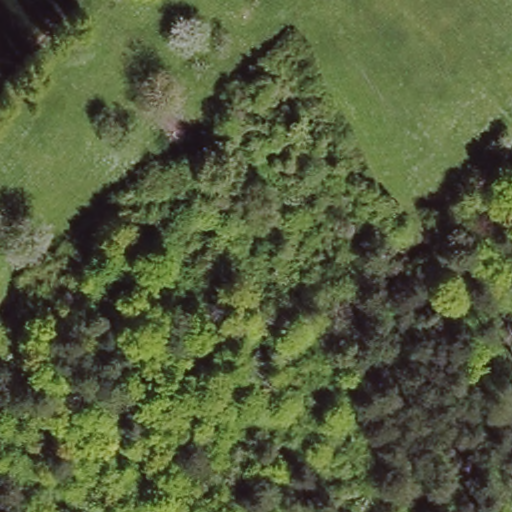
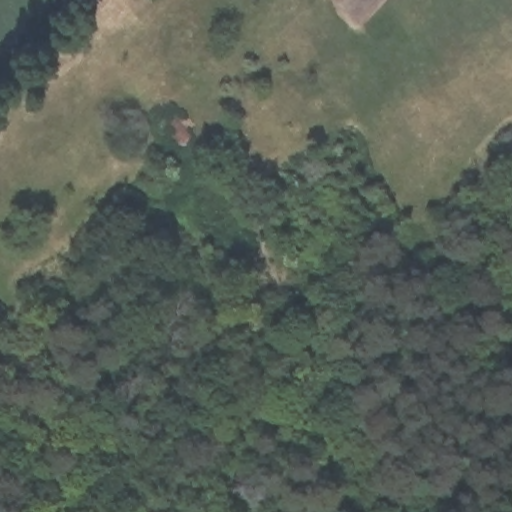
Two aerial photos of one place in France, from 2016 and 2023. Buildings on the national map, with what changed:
[]

